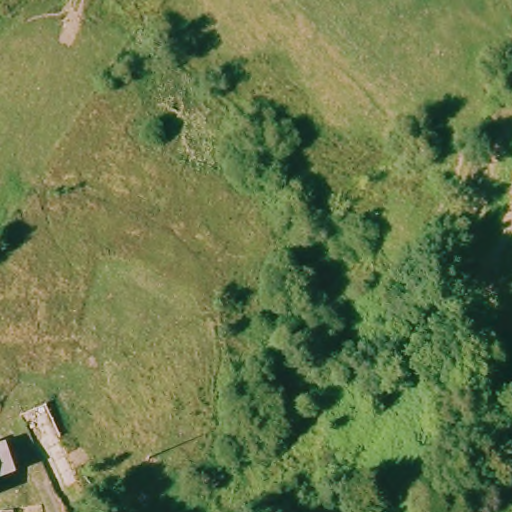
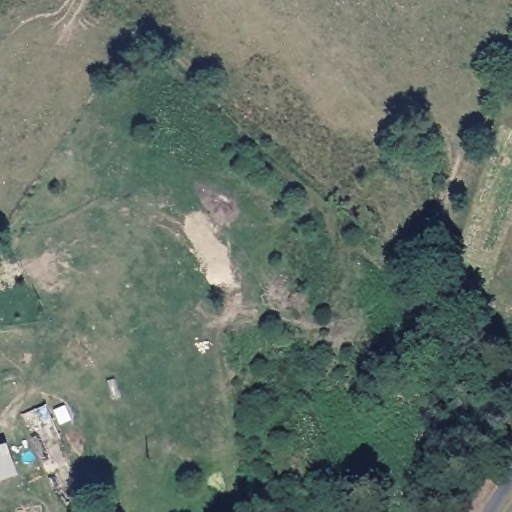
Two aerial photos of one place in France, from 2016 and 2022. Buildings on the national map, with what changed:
unchanged [(0,451),(7,449),(13,478),(0,482),(0,451)]

